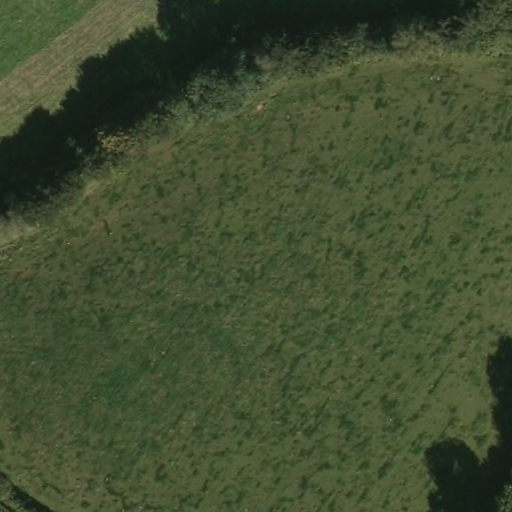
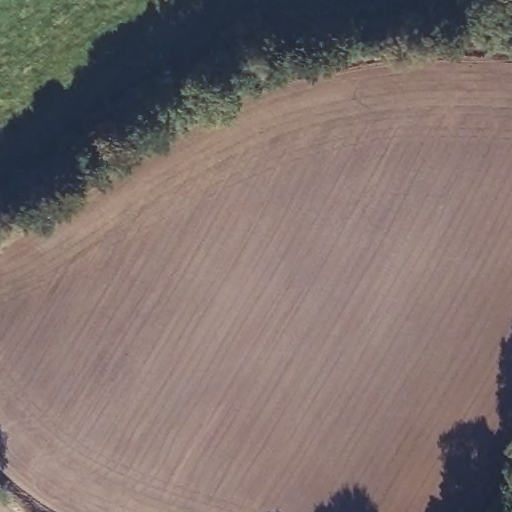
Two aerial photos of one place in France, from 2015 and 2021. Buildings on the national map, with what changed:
[]

